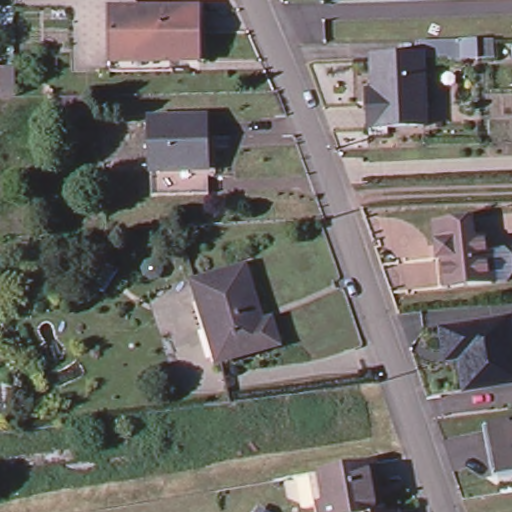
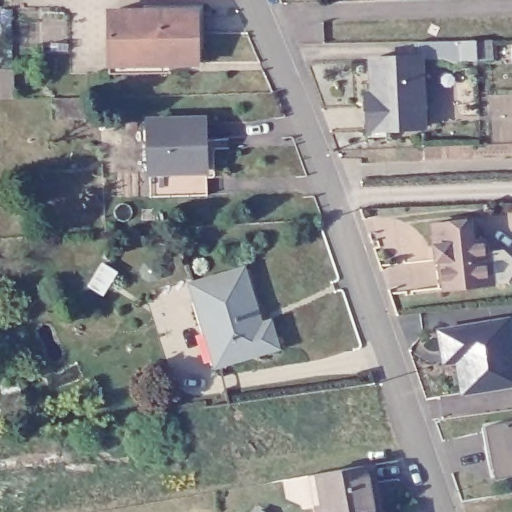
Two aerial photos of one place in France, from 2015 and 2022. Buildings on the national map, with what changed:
unchanged [(168,52),(109,53),(108,9),(196,9),(197,61),(171,61),(168,61),(168,52)]
unchanged [(459,39),(476,38),(477,59),(459,59),(459,39)]
unchanged [(171,71),(109,71),(109,53),(168,52),(168,61),(171,61),(171,71)]
unchanged [(371,56),(420,54),(423,125),(374,127),(371,56)]
unchanged [(14,96),(0,96),(0,66),(13,66),(14,96)]
unchanged [(86,95),(86,115),(51,116),(51,96),(86,95)]
unchanged [(199,108),(201,158),(143,160),(142,109),(199,108)]
unchanged [(202,183),(144,185),(143,160),(201,158),(202,183)]
unchanged [(467,239),(478,238),(484,243),(484,250),(479,256),(482,282),(439,287),(436,258),(432,259),(428,223),(464,219),(467,239)]
unchanged [(221,360),(210,324),(206,325),(193,283),(242,268),(259,325),(269,322),(275,344),(221,360)]
unchanged [(503,318),(506,334),(512,376),(512,382),(459,391),(454,359),(439,361),(438,352),(434,329),(487,321),(503,318)]
unchanged [(1,384),(18,382),(21,406),(4,409),(1,384)]
unchanged [(512,419),(512,472),(497,475),(487,424),(512,419)]
unchanged [(318,500),(328,498),(322,466),(341,463),(371,457),(371,459),(367,460),(372,491),(377,490),(381,509),(394,508),(395,512),(320,512),(318,500)]

